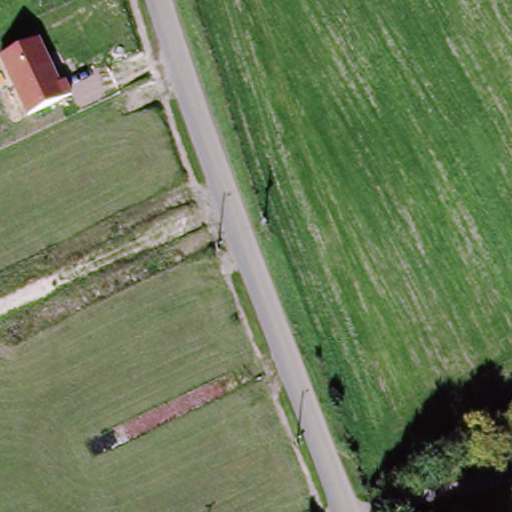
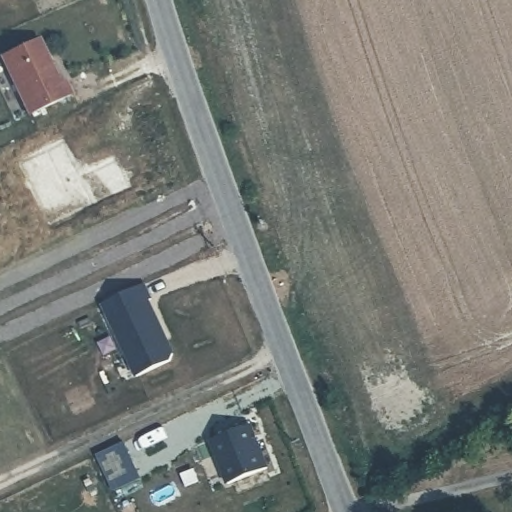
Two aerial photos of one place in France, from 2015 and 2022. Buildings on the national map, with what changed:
unchanged [(0,57),(0,55),(40,37),(59,83),(65,81),(70,95),(27,114),(0,57)]
new [(147,284),(153,297),(150,299),(175,353),(172,359),(135,378),(101,306),(147,284)]
new [(224,490),(207,446),(247,431),(264,475),(224,490)]
new [(143,479),(113,493),(95,455),(125,442),(143,479)]

